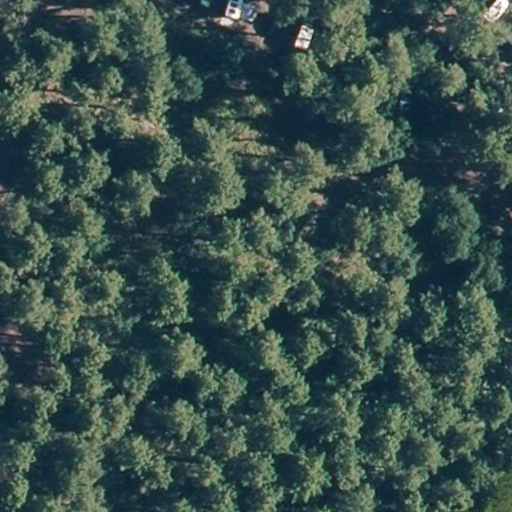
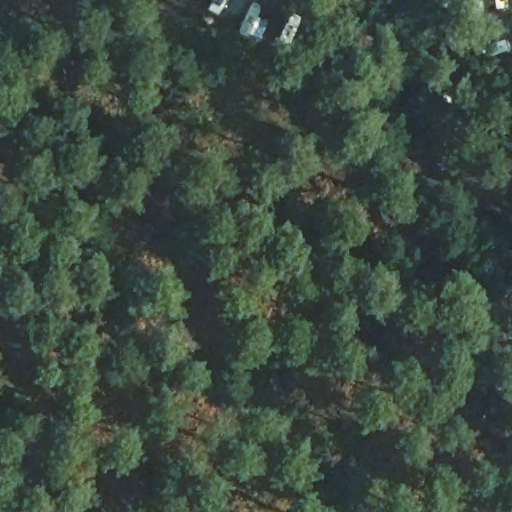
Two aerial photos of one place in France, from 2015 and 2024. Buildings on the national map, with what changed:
[]

